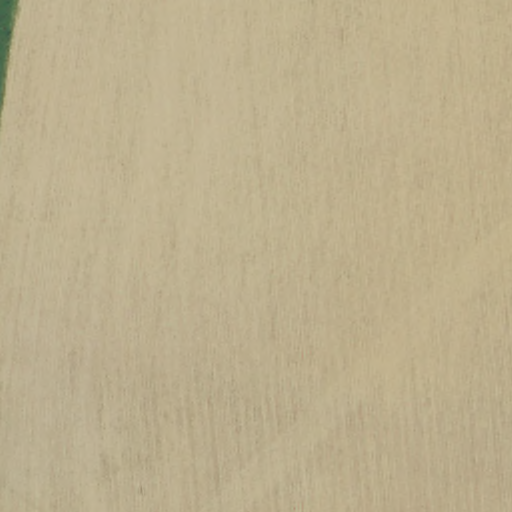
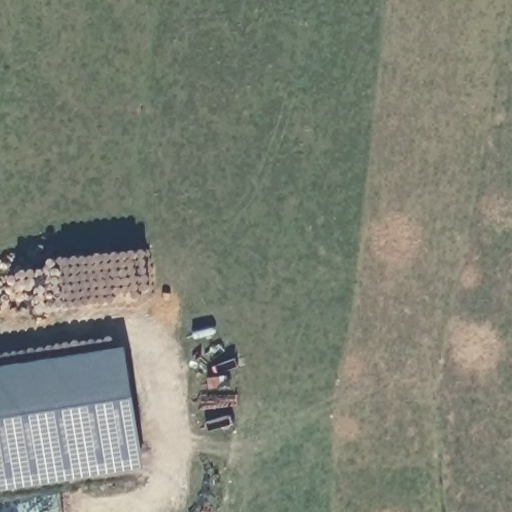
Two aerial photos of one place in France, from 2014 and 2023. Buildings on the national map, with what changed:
new [(124,350),(141,471),(0,493),(0,369),(124,350)]

